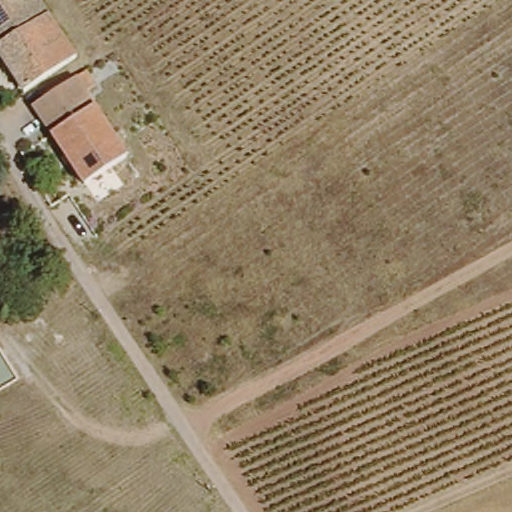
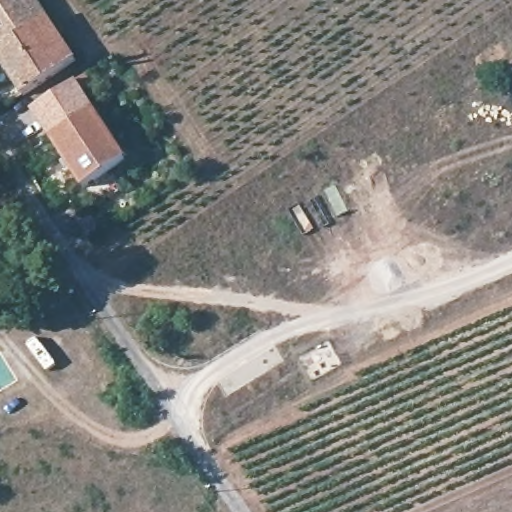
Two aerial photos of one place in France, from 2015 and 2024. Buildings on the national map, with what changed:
unchanged [(0,0),(36,0),(75,58),(17,98),(0,72),(0,0)]
unchanged [(79,192),(36,113),(81,86),(91,82),(98,95),(95,109),(127,165),(79,192)]

